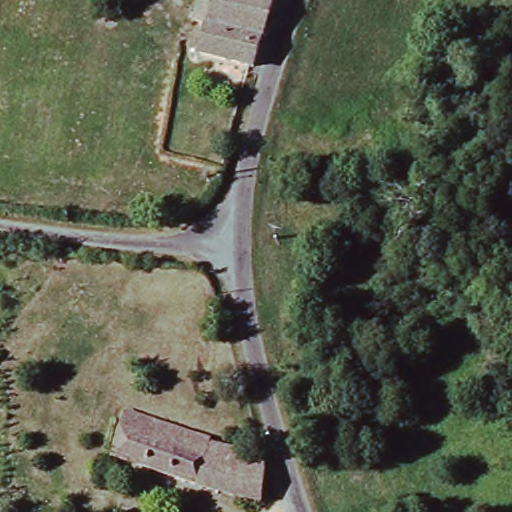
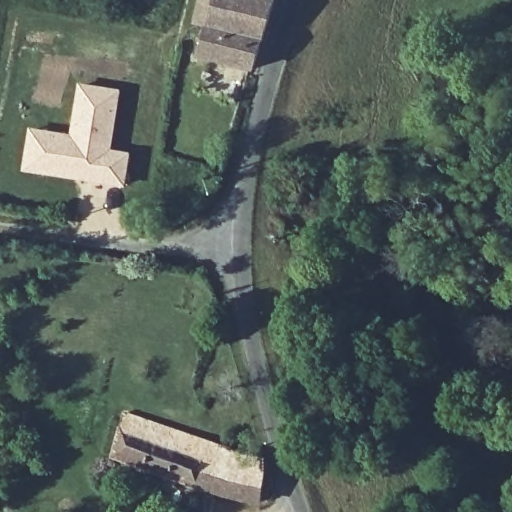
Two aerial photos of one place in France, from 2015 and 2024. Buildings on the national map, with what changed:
unchanged [(204,0),(265,0),(255,40),(197,25),(204,0)]
unchanged [(255,40),(247,66),(190,52),(197,25),(255,40)]
new [(38,167),(23,164),(30,125),(45,127),(72,132),(81,80),(120,87),(110,147),(129,151),(123,182),(85,175),(75,174),(38,167)]
unchanged [(120,406),(168,421),(167,438),(264,463),(256,506),(206,494),(106,452),(120,406)]

